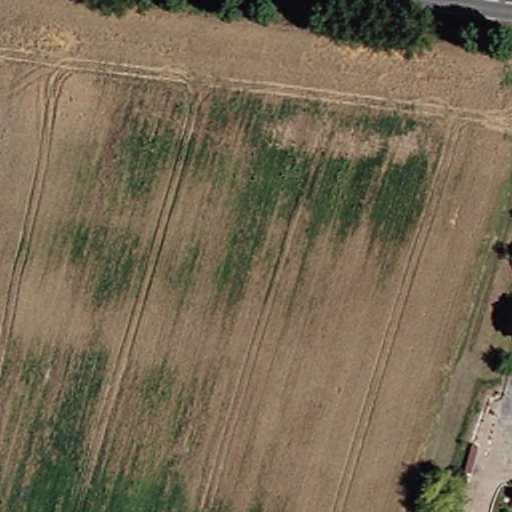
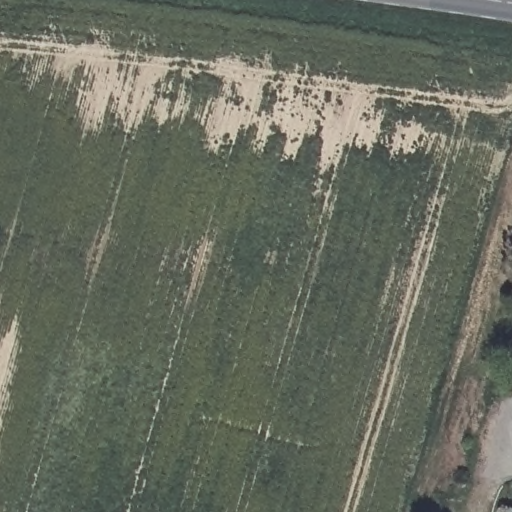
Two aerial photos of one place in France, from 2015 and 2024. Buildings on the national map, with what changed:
[]

